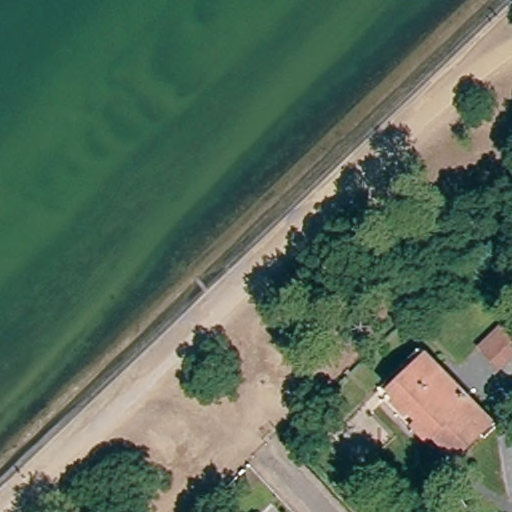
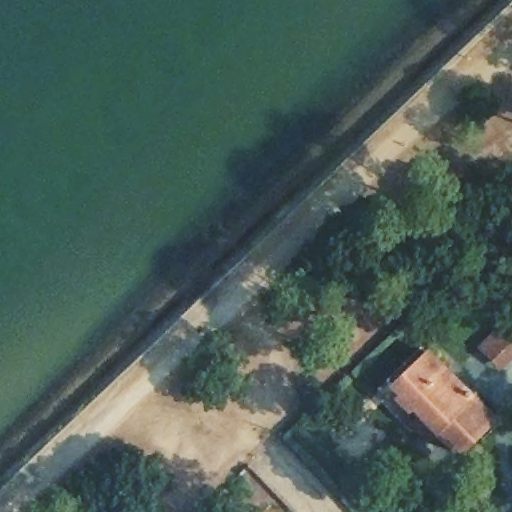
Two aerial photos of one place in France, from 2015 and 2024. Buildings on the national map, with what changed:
unchanged [(482,350),(502,330),(512,341),(512,358),(500,368),(482,350)]
unchanged [(486,428),(453,460),(390,396),(423,364),(486,428)]

